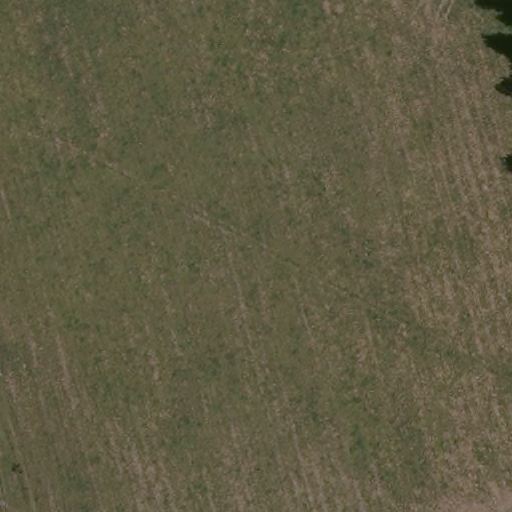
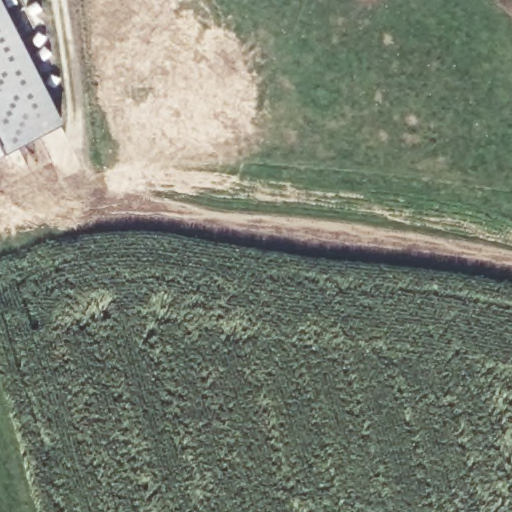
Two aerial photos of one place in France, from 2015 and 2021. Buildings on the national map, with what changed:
new [(0,154),(0,0),(62,124),(0,154)]

